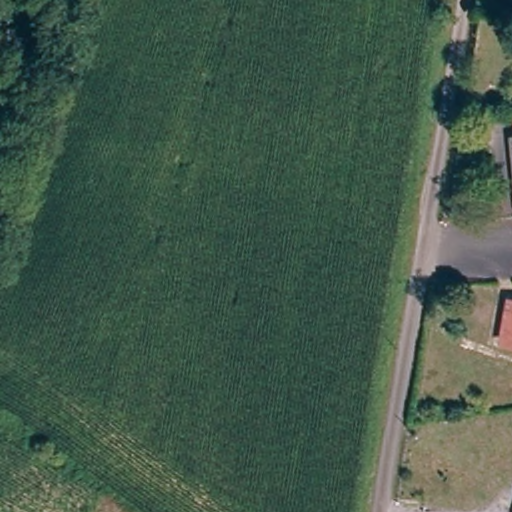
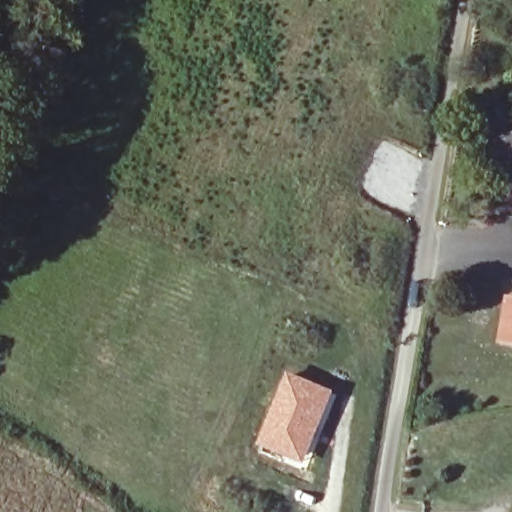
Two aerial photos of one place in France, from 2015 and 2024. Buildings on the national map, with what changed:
unchanged [(512,134),(512,168),(507,135),(512,134)]
unchanged [(507,297),(512,297),(512,345),(500,344),(507,297)]
new [(289,372),(336,391),(304,465),(258,447),(289,372)]

